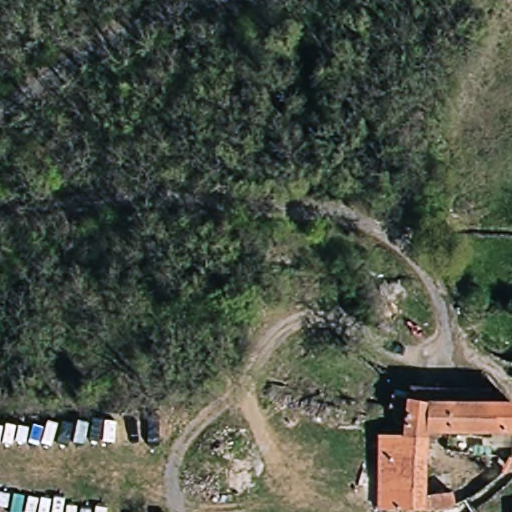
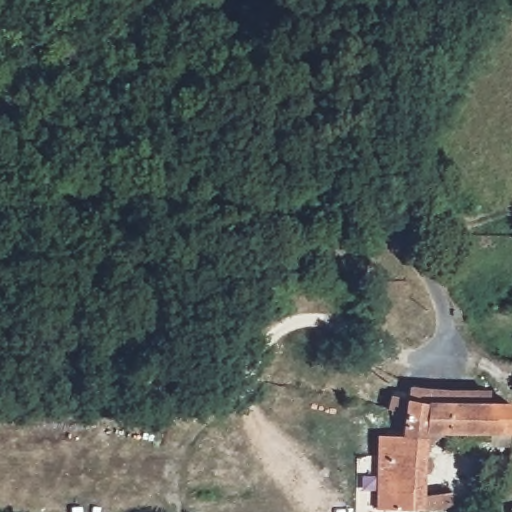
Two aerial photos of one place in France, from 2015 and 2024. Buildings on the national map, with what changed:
unchanged [(431,505),(388,512),(385,512),(380,466),(381,466),(391,465),(399,461),(405,455),(409,400),(497,404),(497,410),(493,431),(436,426),(431,505)]

